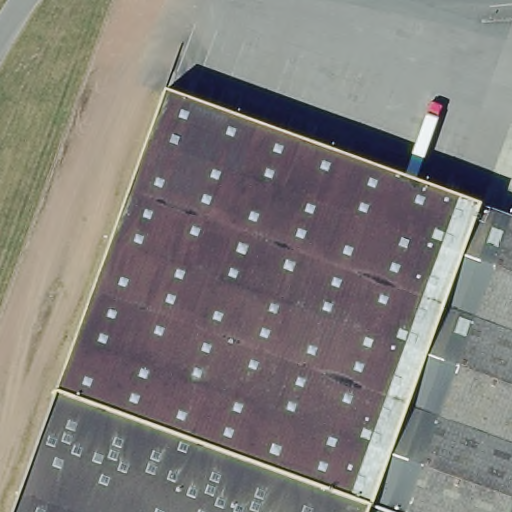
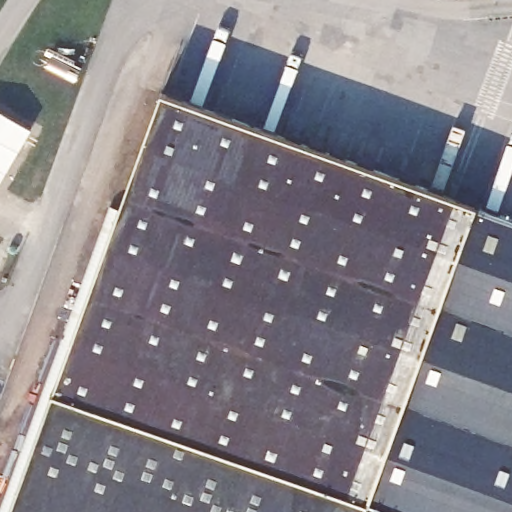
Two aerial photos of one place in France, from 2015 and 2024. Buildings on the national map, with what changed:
unchanged [(53,388),(162,88),(457,195),(461,185),(479,191),(476,200),(512,213),(512,512),(7,512),(52,388),(53,388)]
new [(0,184),(0,111),(32,130),(0,184)]

